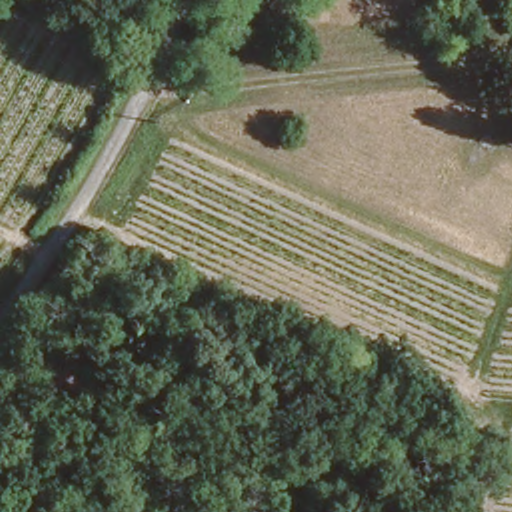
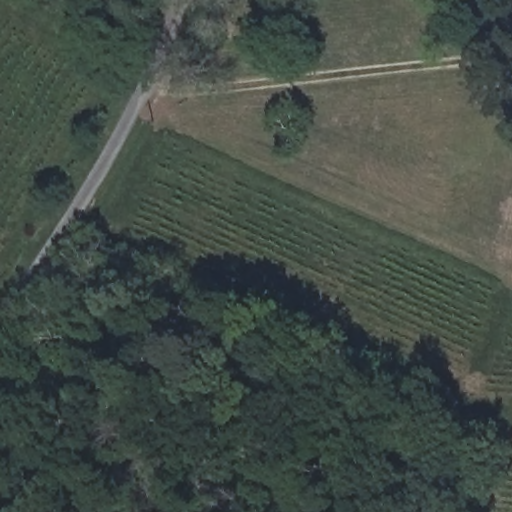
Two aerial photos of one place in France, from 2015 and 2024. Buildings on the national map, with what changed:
[]

